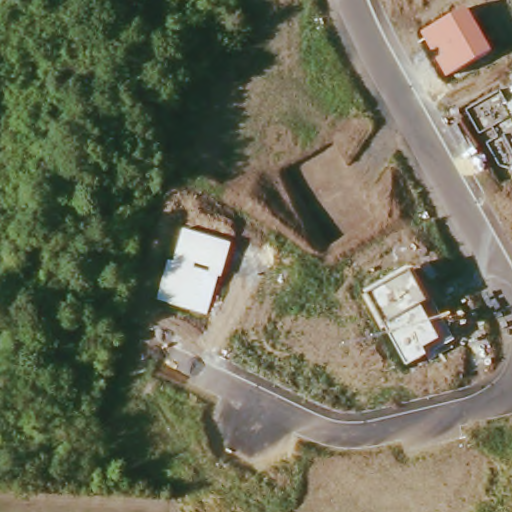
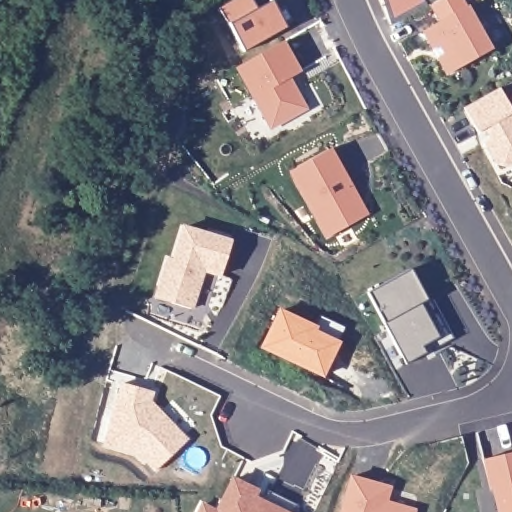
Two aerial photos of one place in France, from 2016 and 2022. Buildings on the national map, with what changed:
new [(251,0),(257,10),(270,2),(286,30),(244,54),(219,10),(237,0),(251,0)]
unchanged [(493,51),(447,76),(437,59),(443,55),(440,47),(432,51),(423,31),(468,8),(493,51)]
new [(282,44),(300,74),(284,82),(288,90),(292,87),(306,110),(274,129),(240,68),(282,44)]
unchanged [(485,142),(496,135),(492,125),(478,132),(465,109),(500,90),(505,100),(512,97),(512,168),(498,165),(485,142)]
new [(330,150),(360,203),(357,205),(365,217),(328,238),(291,172),(330,150)]
unchanged [(221,276),(218,275),(205,314),(155,299),(167,259),(172,260),(182,227),(231,244),(221,276)]
unchanged [(430,300),(455,340),(427,355),(408,364),(387,324),(371,293),(412,270),(430,300)]
new [(123,385),(153,394),(150,409),(160,412),(189,442),(157,472),(139,454),(107,445),(123,385)]
new [(495,489),(492,490),(485,460),(512,453),(512,512),(501,512),(495,489)]
new [(384,486),(392,488),(387,503),(417,511),(416,512),(344,512),(353,478),(384,486)]
new [(235,480),(258,492),(260,486),(302,506),(299,512),(220,512),(235,480)]
new [(216,512),(202,512),(205,507),(216,512)]

